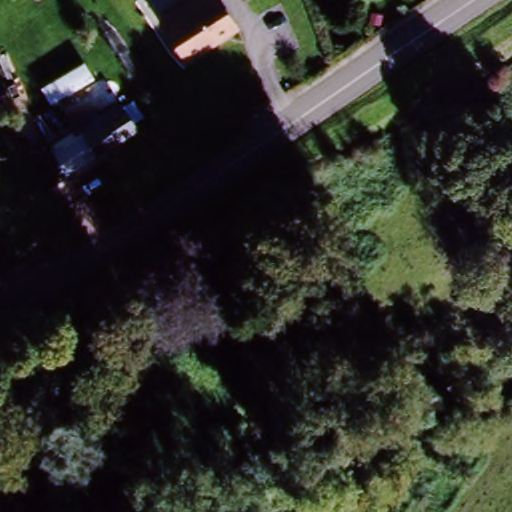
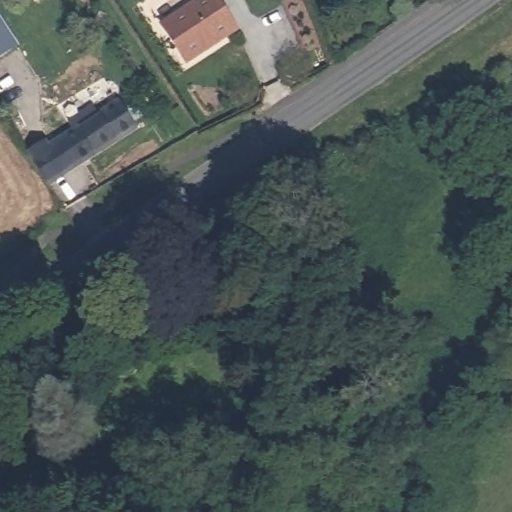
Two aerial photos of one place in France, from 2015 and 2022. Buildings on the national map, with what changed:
unchanged [(184,64),(159,24),(196,0),(220,0),(240,29),(184,64)]
new [(0,58),(0,18),(19,45),(0,58)]
unchanged [(100,119),(121,106),(135,130),(62,172),(49,148),(73,134),(67,124),(94,109),(100,119)]

